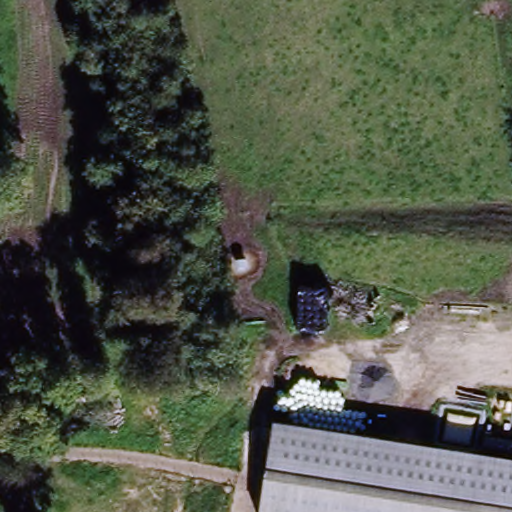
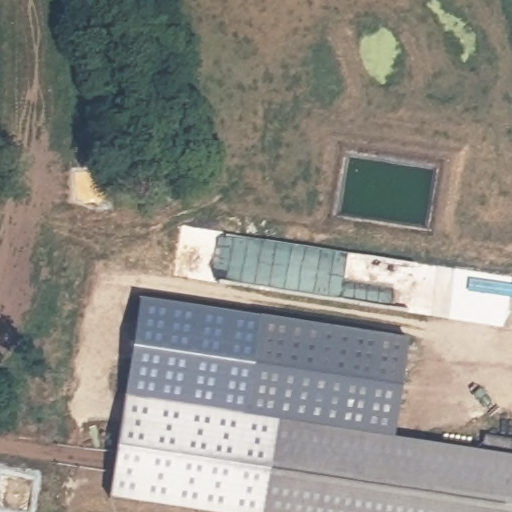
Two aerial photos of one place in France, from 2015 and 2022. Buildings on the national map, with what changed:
new [(260,318),(244,418),(274,422),(261,512),(171,512),(107,503),(138,301),(260,318)]
new [(408,340),(395,437),(275,418),(274,422),(244,418),(260,318),(408,340)]
unchanged [(512,454),(512,512),(261,512),(275,418),(512,454)]

